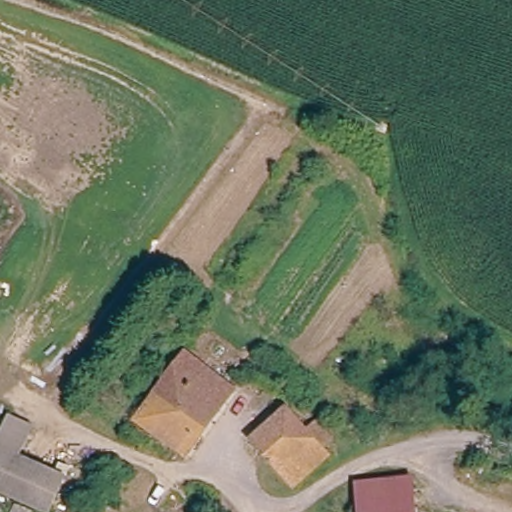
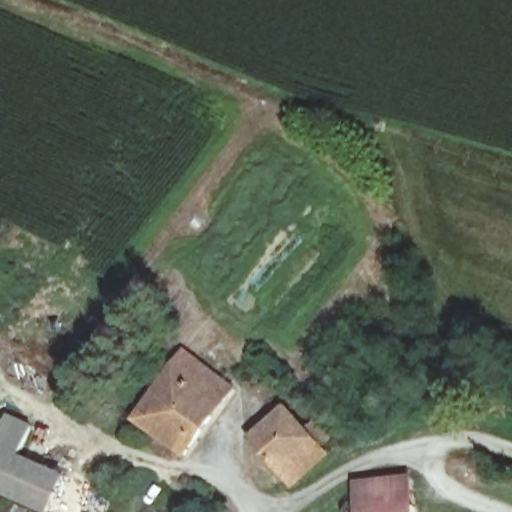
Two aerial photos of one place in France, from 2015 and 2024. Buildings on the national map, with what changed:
unchanged [(184,356),(222,384),(231,376),(234,374),(239,375),(242,379),(242,383),(187,457),(136,422),(184,356)]
unchanged [(287,480),(252,440),(286,407),(322,447),(287,480)]
unchanged [(44,501),(25,487),(12,505),(0,496),(0,435),(17,412),(38,427),(20,453),(57,481),(44,501)]
unchanged [(358,499),(358,483),(383,480),(412,478),(415,512),(359,512),(358,499)]

